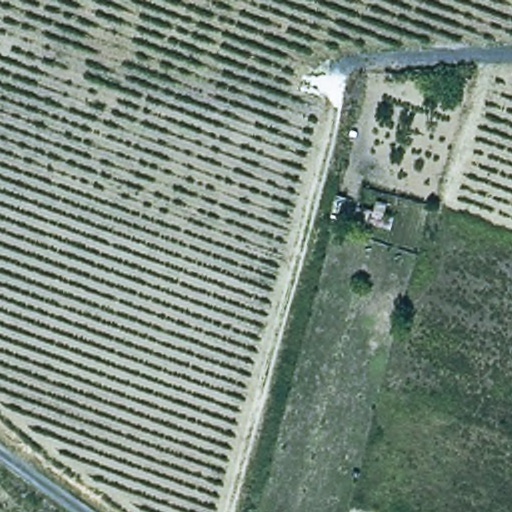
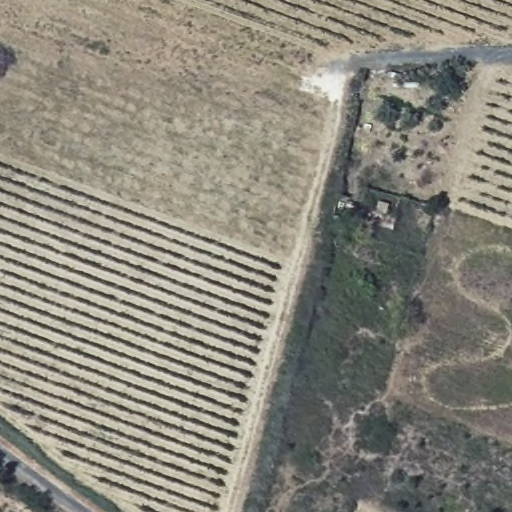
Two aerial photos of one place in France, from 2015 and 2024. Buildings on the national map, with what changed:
unchanged [(365,186),(394,193),(392,205),(402,209),(397,227),(373,223),(371,232),(355,225),(365,186)]

